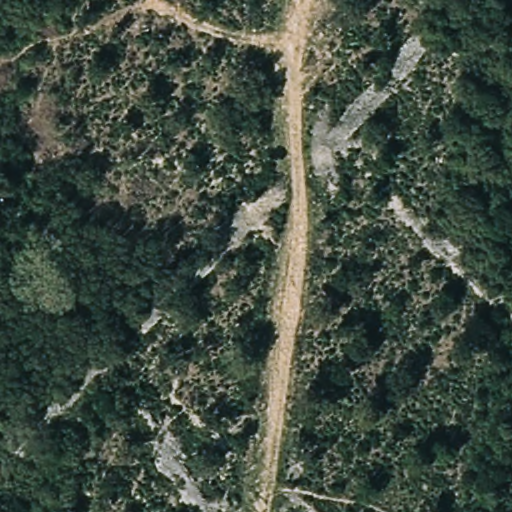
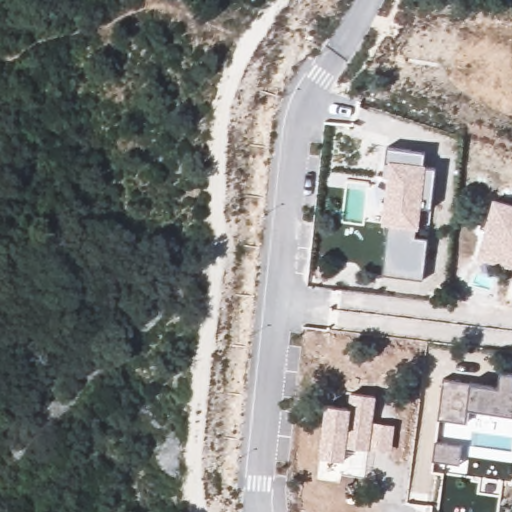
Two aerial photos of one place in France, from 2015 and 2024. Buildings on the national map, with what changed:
new [(425,151),(424,163),(426,163),(425,167),(435,168),(432,207),(421,207),(419,229),(417,229),(416,236),(428,239),(422,280),(383,275),(388,226),(382,225),(387,175),(383,175),(387,146),(425,151)]
new [(512,204),(512,269),(477,258),(488,219),(487,218),(493,199),(512,204)]
new [(470,383),(500,388),(502,371),(512,372),(512,414),(469,410),(467,423),(438,420),(442,379),(470,383)]
new [(347,407),(350,392),(377,396),(373,421),(395,424),(390,450),(369,448),(369,450),(346,446),(343,461),(319,458),(322,430),(325,405),(347,407)]

